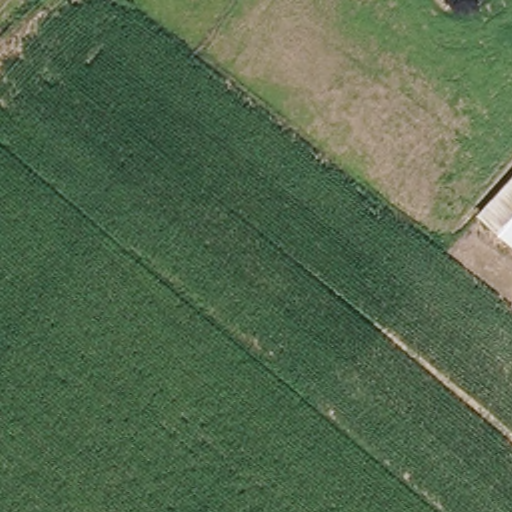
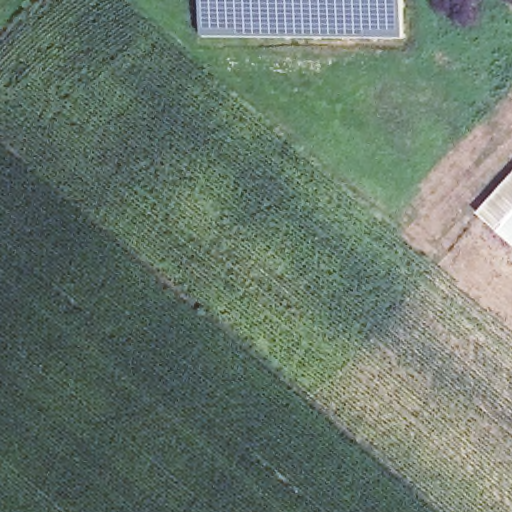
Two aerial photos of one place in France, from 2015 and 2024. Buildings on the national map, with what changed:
new [(203,40),(203,0),(403,0),(403,39),(203,40)]
unchanged [(490,227),(512,198),(512,244),(490,227)]

